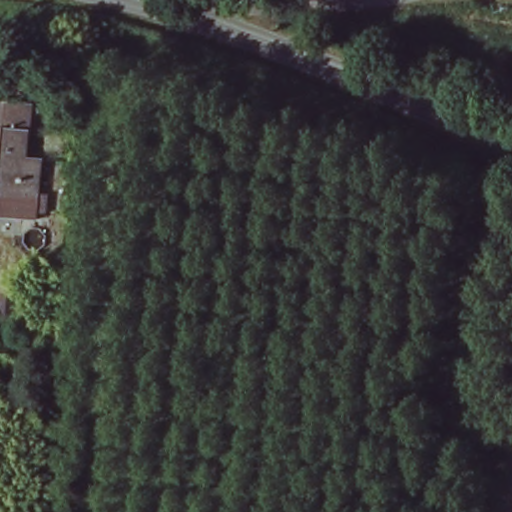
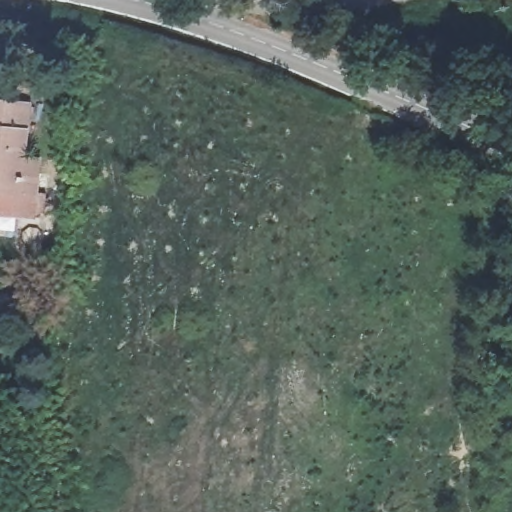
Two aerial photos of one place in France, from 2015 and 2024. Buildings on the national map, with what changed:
unchanged [(33,115),(31,148),(45,150),(42,191),(1,186),(0,186),(0,111),(33,115)]

